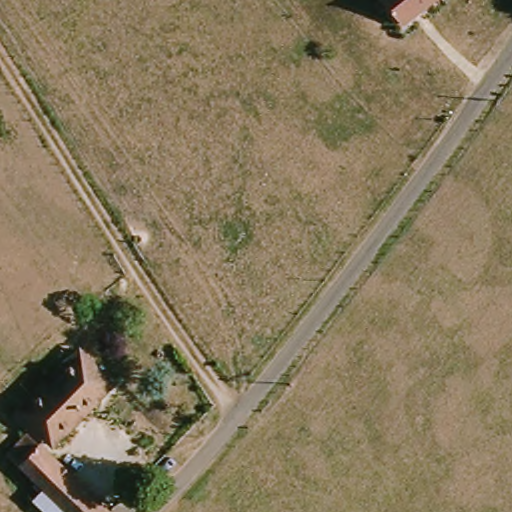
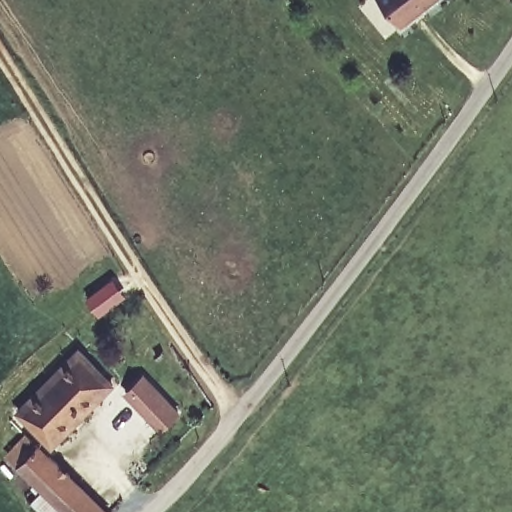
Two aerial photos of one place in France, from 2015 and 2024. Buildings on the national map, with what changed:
unchanged [(381,0),(434,0),(403,26),(381,0)]
unchanged [(33,432),(16,415),(75,356),(92,372),(109,389),(91,406),(49,447),(33,432)]
new [(180,415),(161,433),(124,394),(143,376),(180,415)]
unchanged [(43,461),(49,455),(82,490),(62,511),(10,457),(24,442),(43,461)]
unchanged [(62,511),(82,490),(106,512),(63,512),(62,511)]

